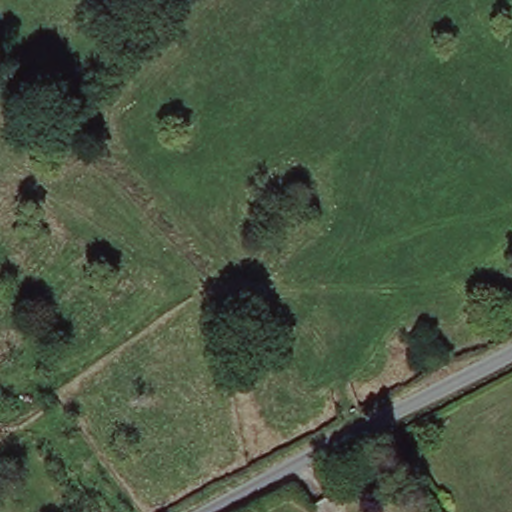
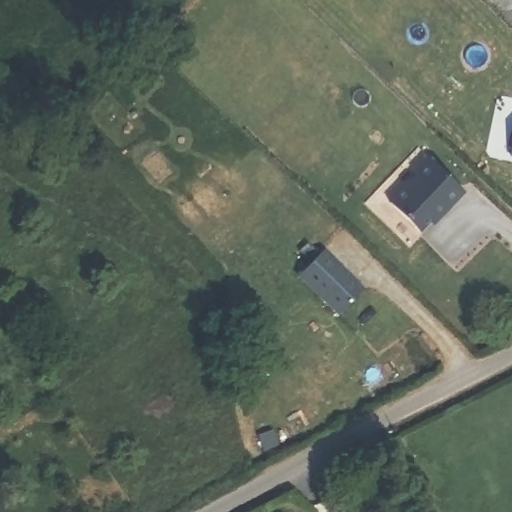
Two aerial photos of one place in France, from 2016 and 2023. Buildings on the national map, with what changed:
new [(510,153),(512,141),(512,153),(510,153)]
new [(461,185),(437,211),(432,206),(415,223),(389,197),(415,170),(411,166),(426,151),(461,185)]
new [(320,247),(358,282),(334,308),(296,271),(320,247)]

